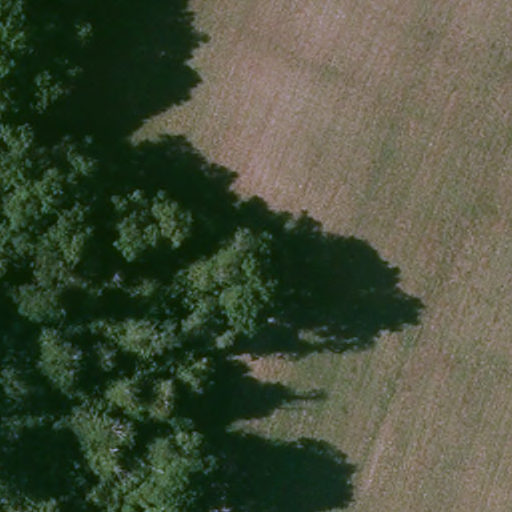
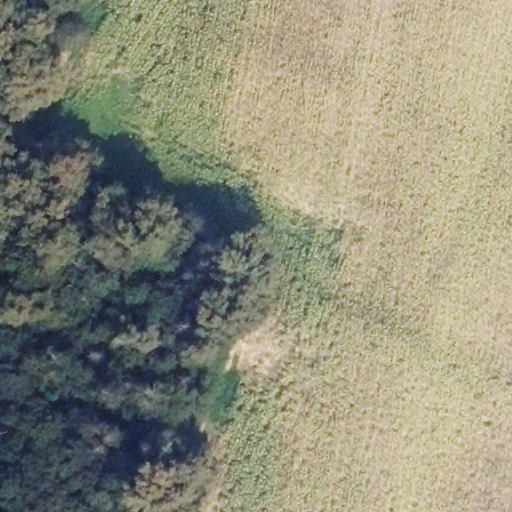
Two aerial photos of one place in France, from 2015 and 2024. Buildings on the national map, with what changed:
[]

